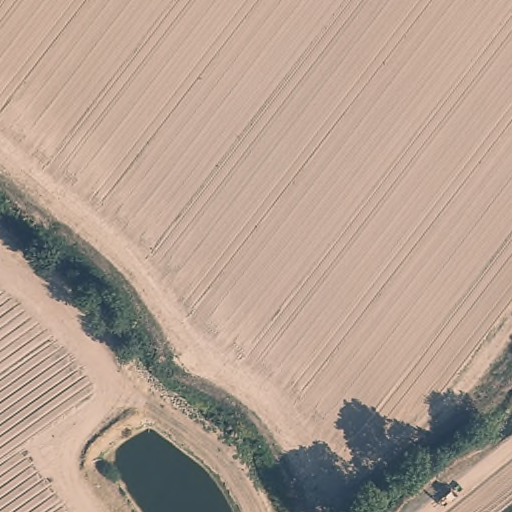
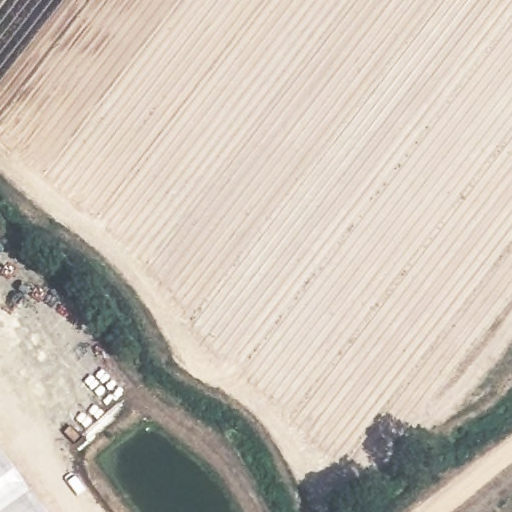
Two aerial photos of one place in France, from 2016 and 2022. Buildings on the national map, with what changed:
new [(43,512),(0,512),(0,453),(43,512)]

